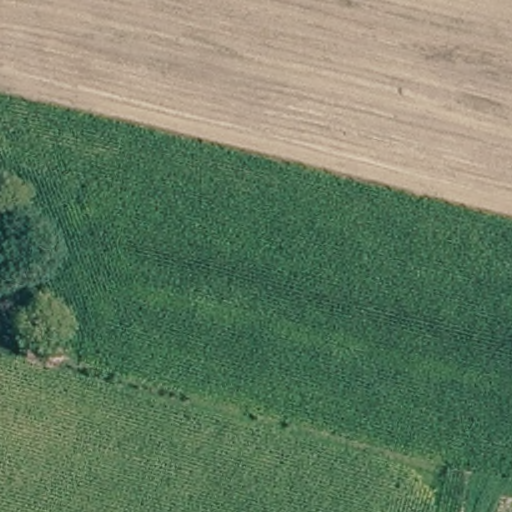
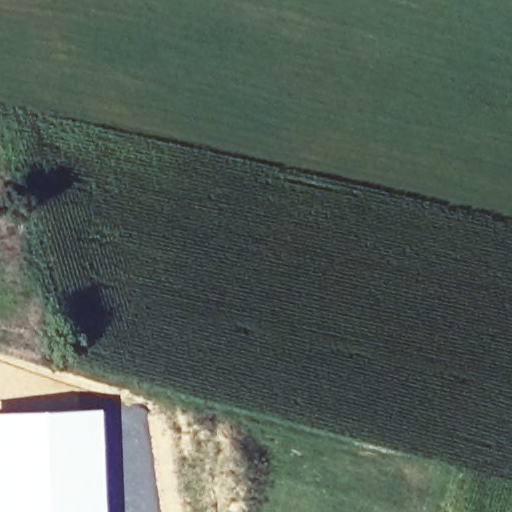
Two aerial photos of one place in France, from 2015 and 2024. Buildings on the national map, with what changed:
new [(100,512),(0,512),(0,412),(96,408),(100,512)]

